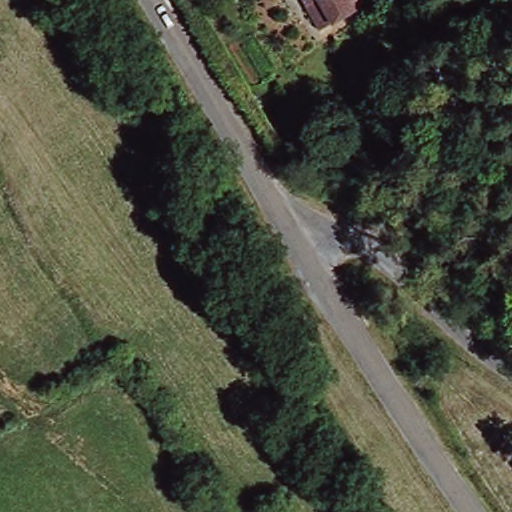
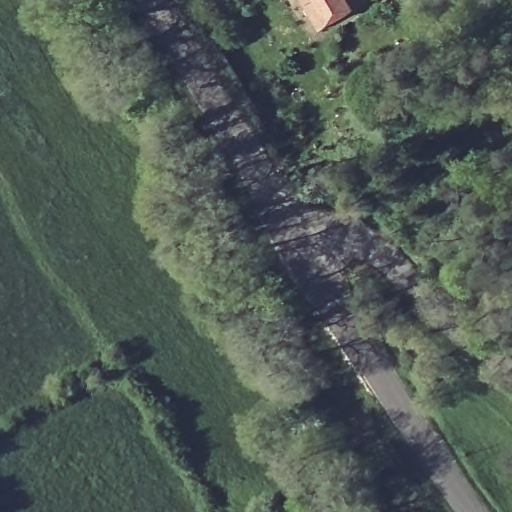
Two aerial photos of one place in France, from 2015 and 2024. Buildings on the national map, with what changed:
unchanged [(323,27),(306,0),(365,0),(323,27)]

